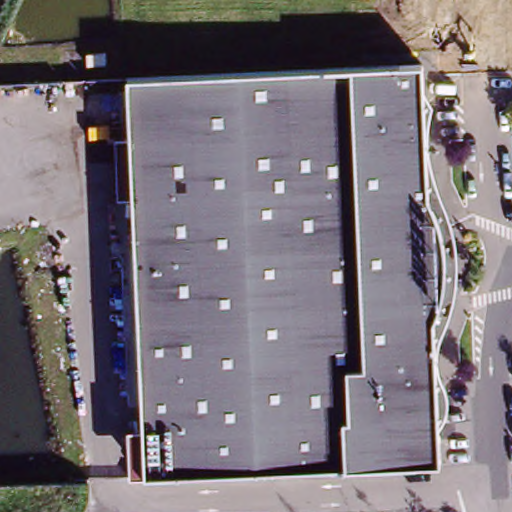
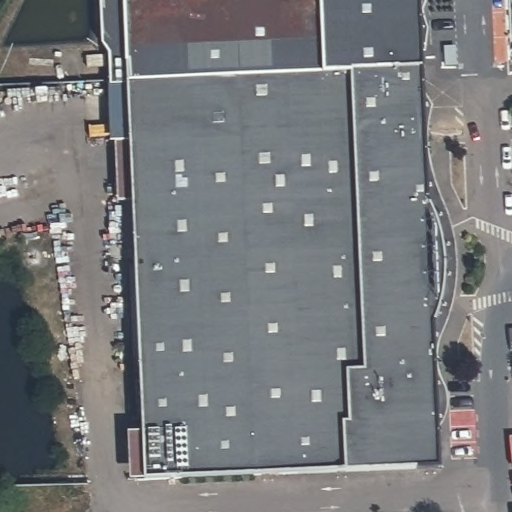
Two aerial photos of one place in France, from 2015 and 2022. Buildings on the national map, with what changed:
new [(117,200),(115,140),(112,139),(110,53),(102,43),(100,0),(419,0),(419,8),(422,68),(132,81),(138,197),(117,200)]
new [(106,71),(89,72),(88,60),(105,59),(106,71)]
unchanged [(152,477),(132,81),(430,68),(437,184),(452,208),(462,246),(464,285),(457,318),(443,343),(445,468),(152,477)]

